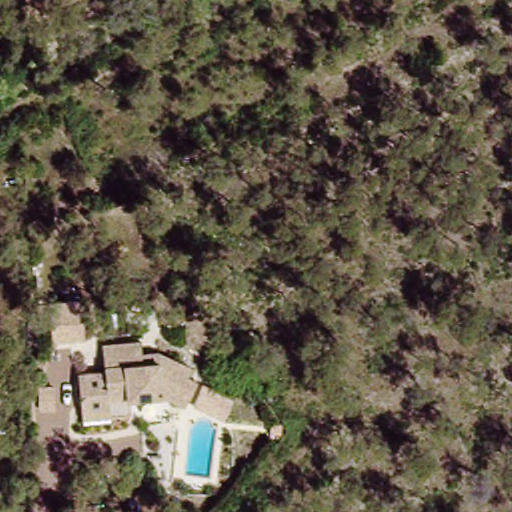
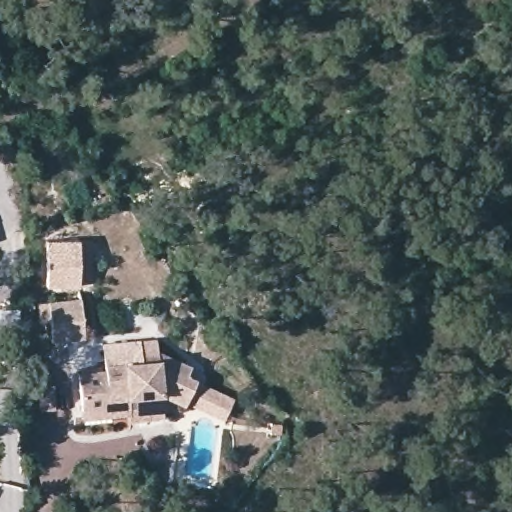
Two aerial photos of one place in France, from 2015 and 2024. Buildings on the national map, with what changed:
new [(79,238),(79,286),(45,287),(46,239),(79,238)]
unchanged [(88,337),(59,341),(54,300),(85,297),(88,337)]
unchanged [(87,423),(83,412),(72,380),(99,370),(91,345),(128,334),(132,344),(148,339),(185,348),(182,361),(190,364),(185,387),(159,381),(131,390),(130,388),(137,408),(87,423)]

